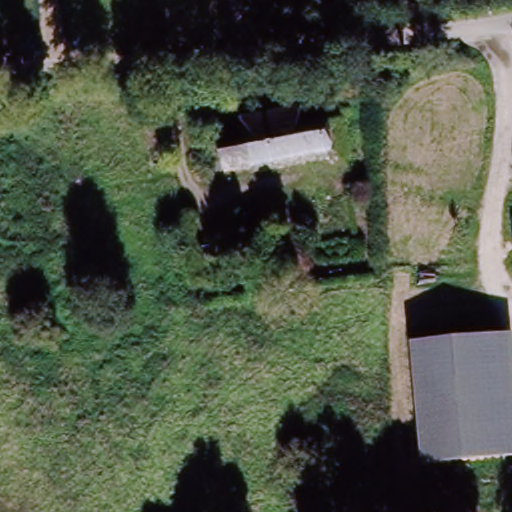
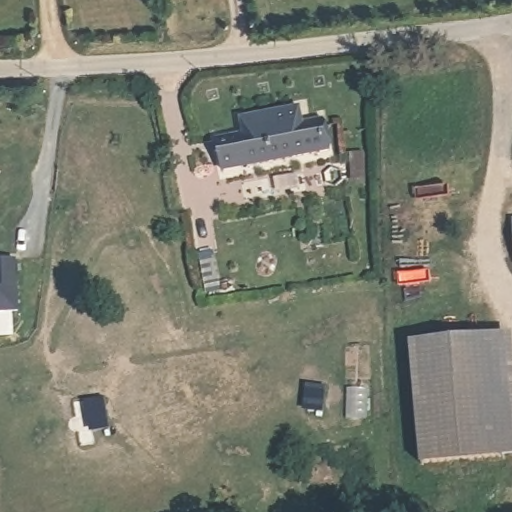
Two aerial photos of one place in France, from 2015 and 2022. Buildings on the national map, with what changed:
unchanged [(236,140),(233,126),(285,114),(289,128),(308,124),(315,154),(199,179),(193,150),(236,140)]
unchanged [(512,223),(511,207),(512,207),(512,230),(512,223)]
new [(21,313),(0,314),(0,262),(18,261),(21,313)]
unchanged [(507,327),(512,376),(512,450),(422,463),(409,335),(507,327)]

